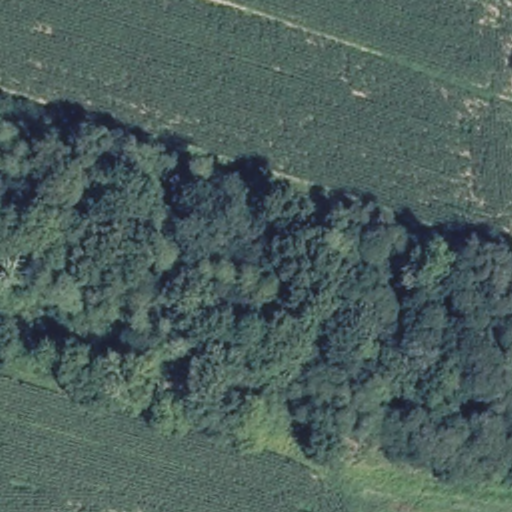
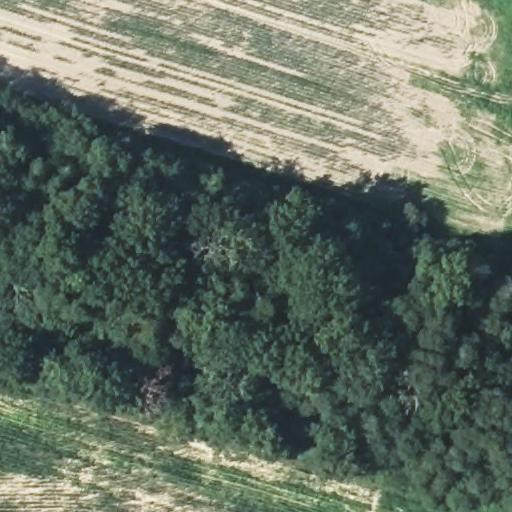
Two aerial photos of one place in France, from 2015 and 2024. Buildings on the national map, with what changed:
[]

